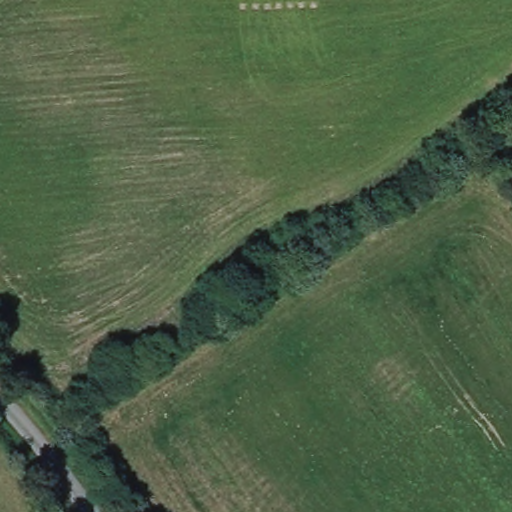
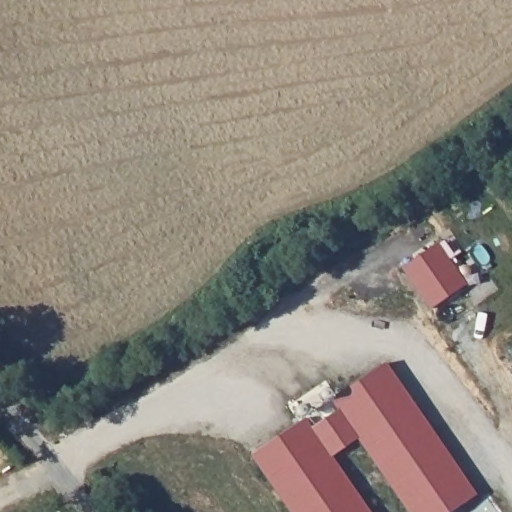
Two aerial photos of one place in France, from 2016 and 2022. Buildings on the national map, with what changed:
new [(467,282),(431,308),(401,267),(439,241),(467,282)]
new [(477,497),(454,512),(409,512),(358,440),(332,458),(369,512),(288,512),(248,456),(308,417),(313,426),(337,409),(330,399),(386,361),(477,497)]

